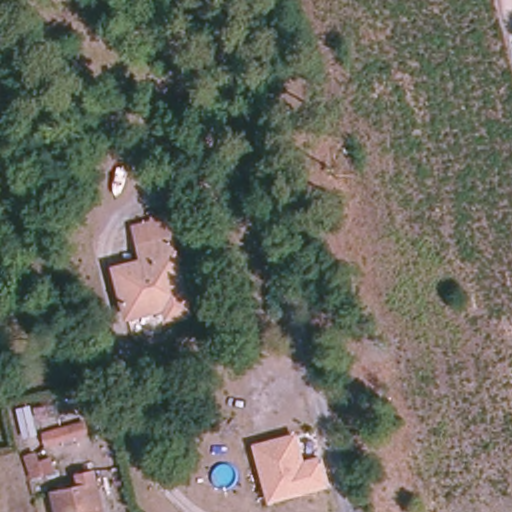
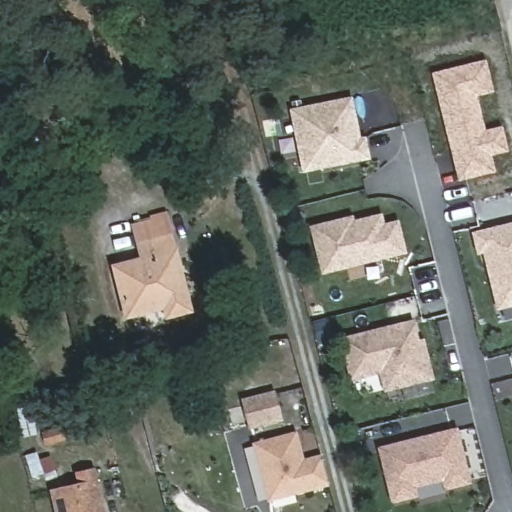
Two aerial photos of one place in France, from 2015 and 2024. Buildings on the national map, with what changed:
new [(495,172),(458,183),(433,75),(485,62),(492,94),(477,97),(485,131),(502,128),(506,153),(492,156),(495,172)]
new [(304,167),(293,109),(350,98),(358,139),(363,138),(367,155),(329,162),(321,164),(304,167)]
new [(322,273),(312,229),(351,220),(351,224),(379,217),(382,228),(396,224),(403,252),(387,256),(380,258),(322,273)]
unchanged [(143,261),(134,227),(165,219),(189,310),(168,316),(165,305),(127,316),(115,268),(143,261)]
new [(512,305),(498,308),(484,251),(478,253),(474,235),(512,226),(512,305)]
new [(417,343),(422,343),(424,350),(431,378),(386,389),(381,370),(352,377),(343,340),(412,323),(417,343)]
new [(248,430),(240,400),(274,391),(282,421),(248,430)]
unchanged [(34,399),(41,429),(30,432),(22,402),(34,399)]
unchanged [(90,417),(94,429),(50,441),(47,428),(90,417)]
unchanged [(266,503),(250,443),(295,431),(303,458),(321,455),(328,486),(266,503)]
new [(431,437),(453,432),(466,482),(445,488),(442,478),(410,486),(413,496),(391,501),(379,450),(424,439),(431,437)]
unchanged [(41,448),(46,470),(36,473),(30,450),(41,448)]
unchanged [(77,474),(93,470),(103,512),(56,512),(52,493),(80,486),(77,474)]

